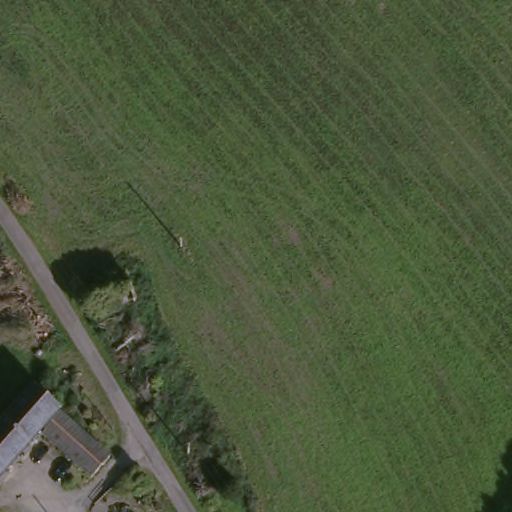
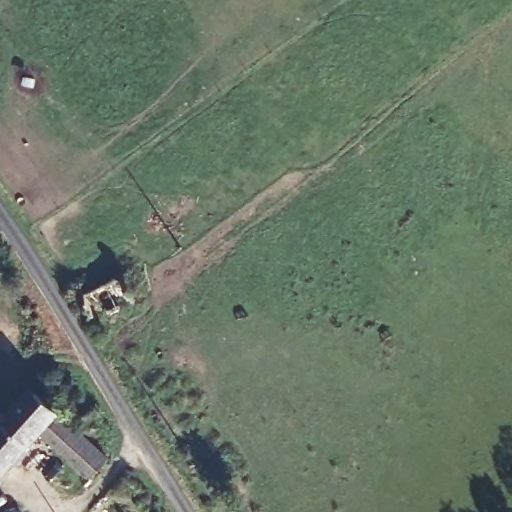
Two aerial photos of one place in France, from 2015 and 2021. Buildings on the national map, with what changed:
unchanged [(78,295),(119,274),(131,297),(91,319),(78,295)]
unchanged [(59,414),(0,480),(0,426),(32,391),(59,414)]
unchanged [(108,464),(88,484),(41,442),(64,419),(74,429),(108,464)]

